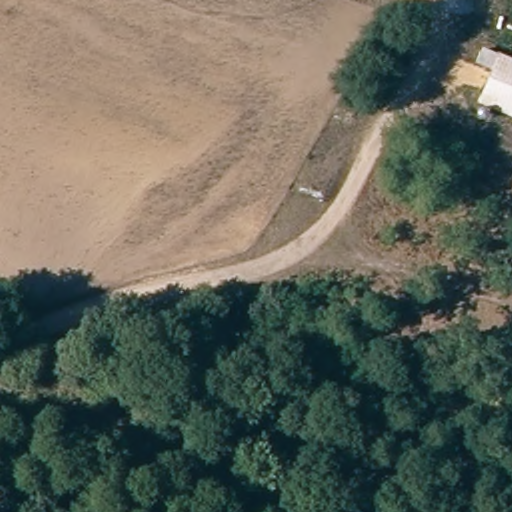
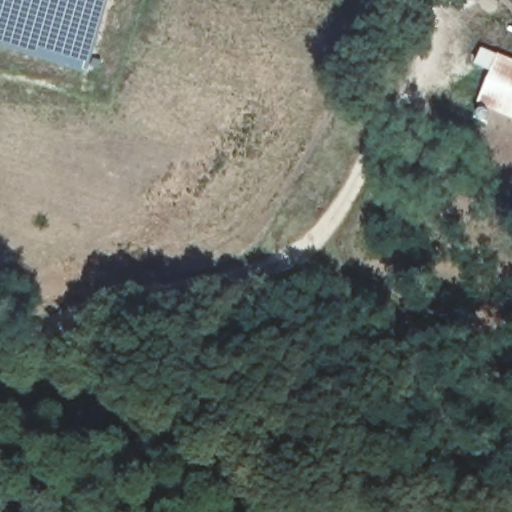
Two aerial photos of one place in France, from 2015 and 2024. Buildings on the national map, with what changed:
new [(86,73),(14,49),(0,45),(0,0),(108,0),(86,73)]
unchanged [(512,109),(478,96),(490,67),(475,61),(481,47),(512,60),(512,109)]

